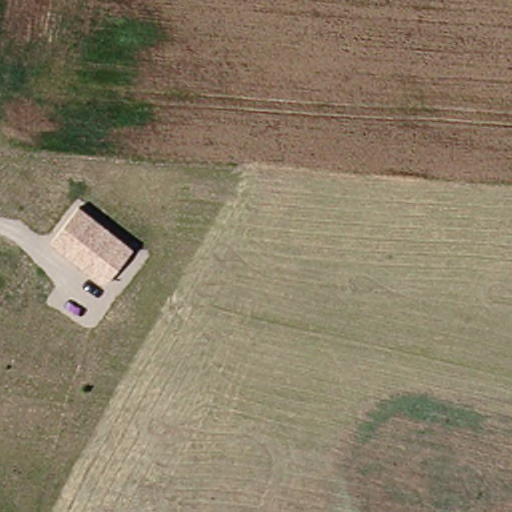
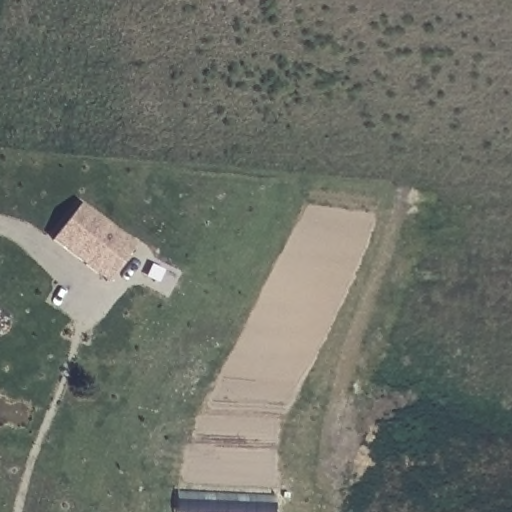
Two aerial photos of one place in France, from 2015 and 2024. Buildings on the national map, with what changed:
unchanged [(135,245),(105,283),(52,240),(81,203),(135,245)]
new [(273,494),(273,512),(176,512),(176,490),(273,494)]

